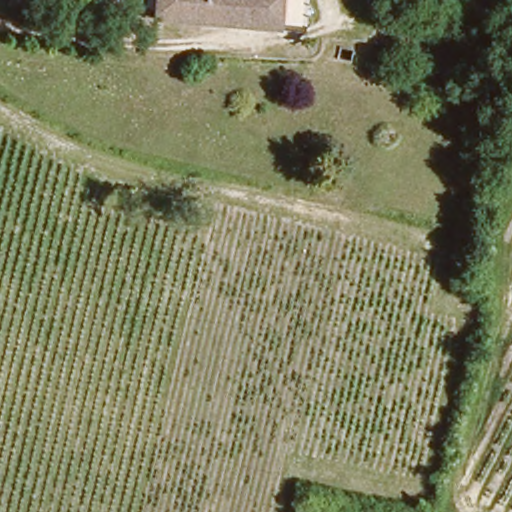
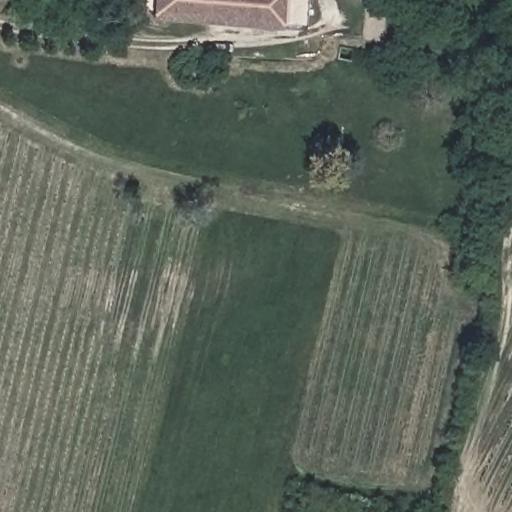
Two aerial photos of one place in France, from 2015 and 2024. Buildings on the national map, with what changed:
unchanged [(278,29),(153,14),(155,0),(281,0),(278,29)]

